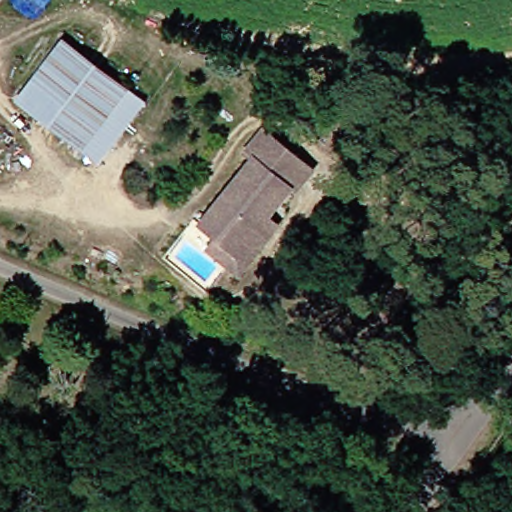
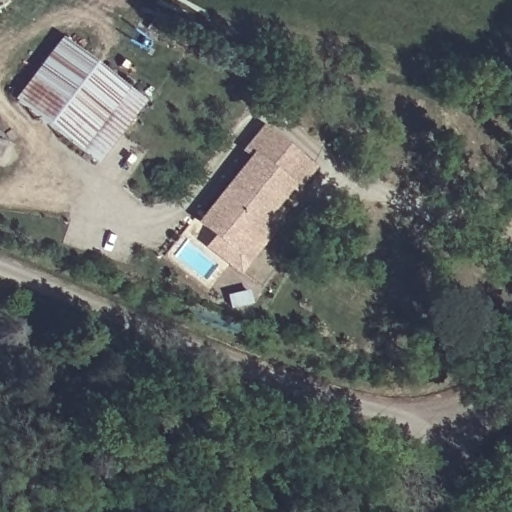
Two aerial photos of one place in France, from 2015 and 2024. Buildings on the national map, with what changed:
unchanged [(13,95),(60,36),(137,99),(90,157),(13,95)]
unchanged [(232,270),(200,244),(209,232),(192,219),(242,154),(234,147),(252,123),(302,161),(283,185),(280,182),(255,215),(265,223),(240,257),(240,258),(232,270)]

